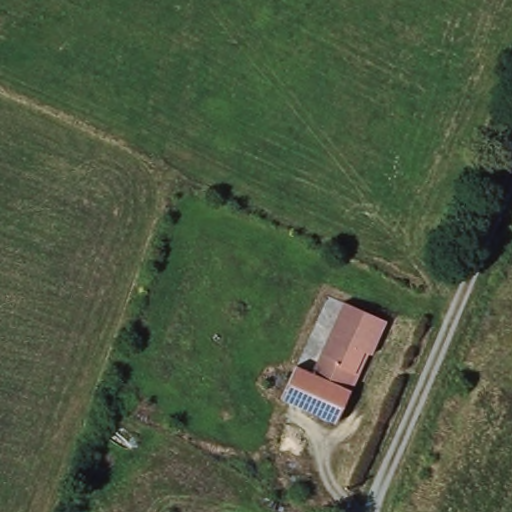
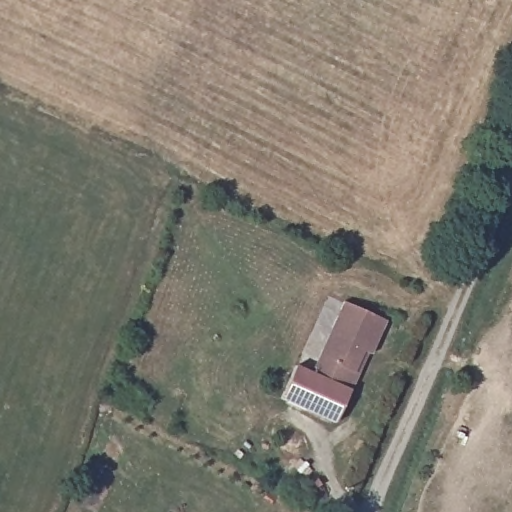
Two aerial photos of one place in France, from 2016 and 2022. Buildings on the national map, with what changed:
unchanged [(389,322),(374,357),(369,356),(341,426),(285,403),(299,370),(315,377),(344,304),(389,322)]

